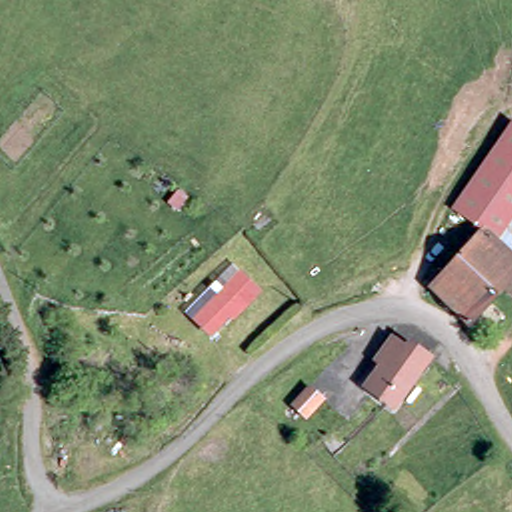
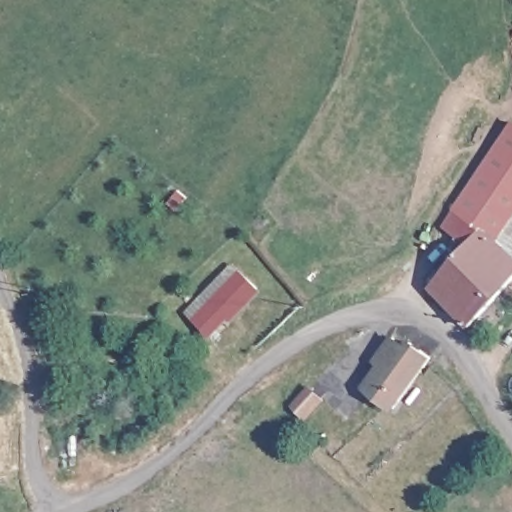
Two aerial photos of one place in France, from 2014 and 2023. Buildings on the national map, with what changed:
unchanged [(488,233),(467,215),(462,211),(512,133),(512,256),(488,233)]
unchanged [(488,233),(512,256),(512,290),(475,329),(433,290),(488,233)]
unchanged [(258,305),(213,351),(198,336),(189,328),(221,295),(234,282),(258,305)]
unchanged [(404,412),(381,398),(396,374),(390,370),(380,363),(393,342),(411,352),(415,346),(436,360),(404,412)]
unchanged [(309,416),(325,397),(338,407),(323,427),(309,416)]

